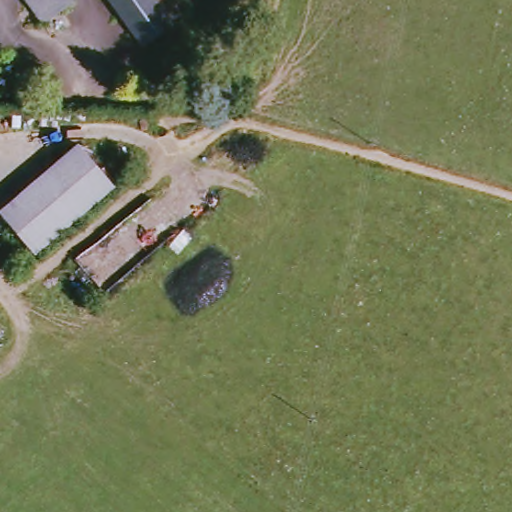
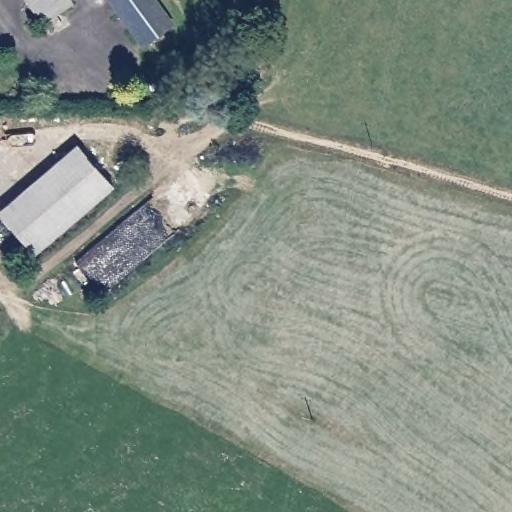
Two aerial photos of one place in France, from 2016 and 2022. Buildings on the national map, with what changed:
unchanged [(80,6),(67,15),(48,28),(29,0),(76,0),(80,6)]
unchanged [(146,50),(113,0),(174,0),(185,17),(173,25),(176,30),(146,50)]
unchanged [(120,191),(39,258),(6,214),(87,147),(120,191)]

